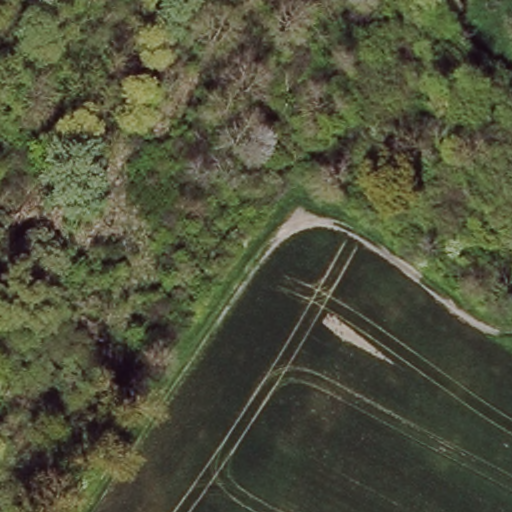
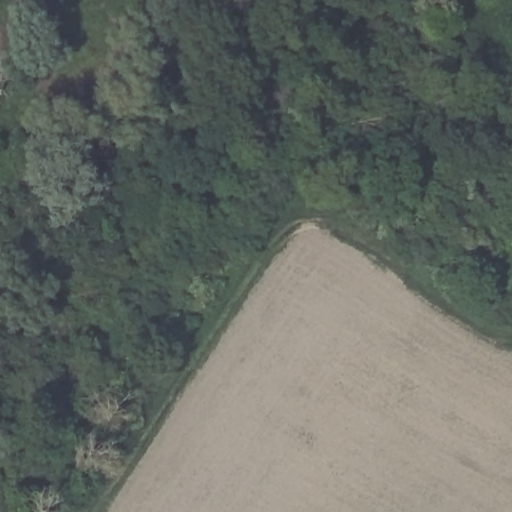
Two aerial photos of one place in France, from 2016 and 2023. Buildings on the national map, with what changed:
[]

